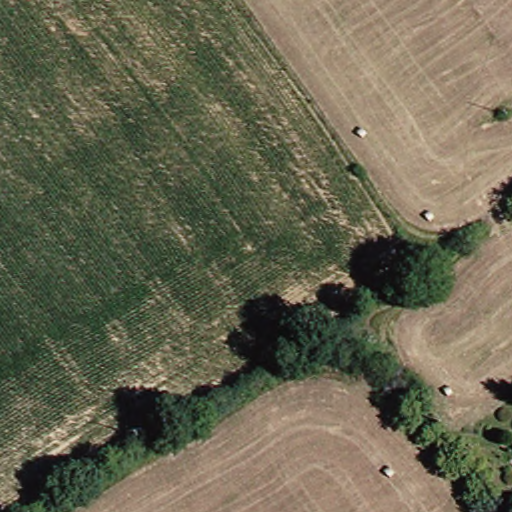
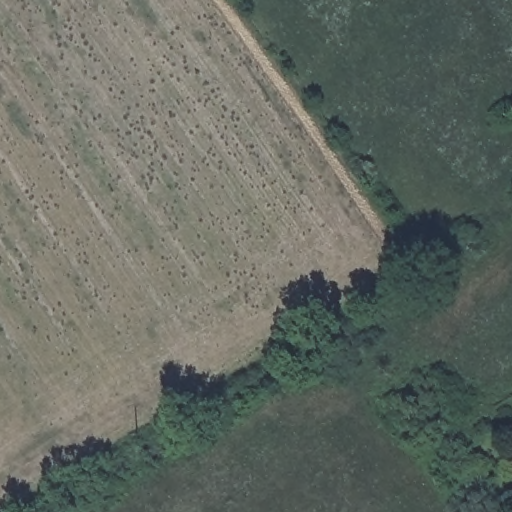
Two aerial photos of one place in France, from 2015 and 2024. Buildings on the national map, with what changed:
unchanged [(512,455),(512,464),(507,458),(512,455)]

